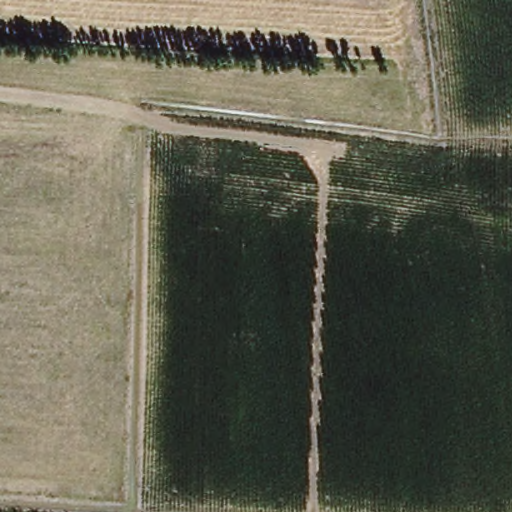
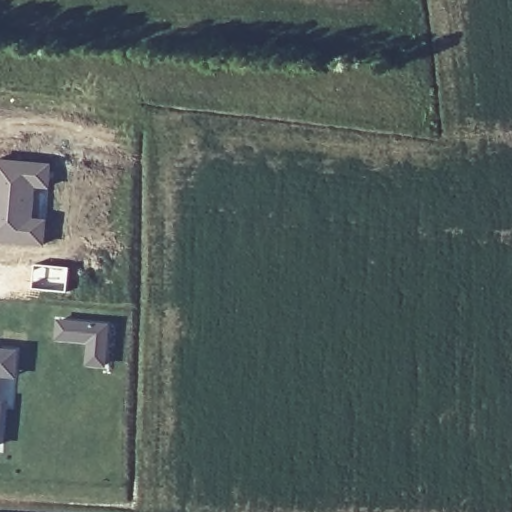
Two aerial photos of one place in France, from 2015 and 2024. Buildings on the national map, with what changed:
new [(53,162),(50,190),(37,189),(35,215),(49,217),(45,248),(0,244),(0,158),(53,162)]
new [(34,264),(70,267),(67,292),(31,289),(34,264)]
new [(54,319),(104,323),(101,363),(84,362),(85,339),(52,337),(54,319)]
new [(20,350),(16,378),(1,377),(0,393),(0,348),(20,350)]
new [(5,404),(1,447),(0,446),(0,404),(5,404)]

